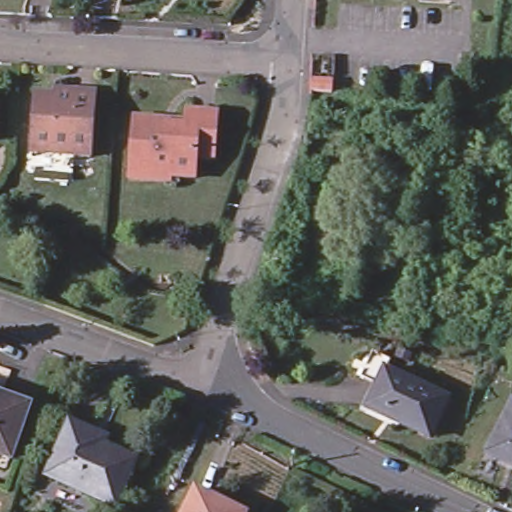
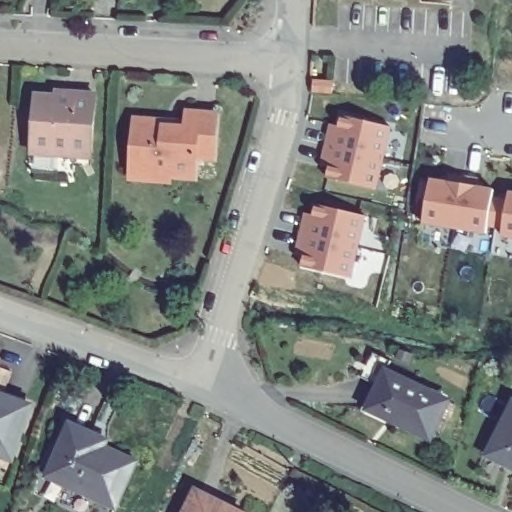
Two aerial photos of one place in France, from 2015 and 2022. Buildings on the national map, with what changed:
unchanged [(247,23),(241,17),(249,10),(254,16),(247,23)]
unchanged [(89,91),(87,154),(28,152),(30,95),(50,95),(50,89),(89,91)]
unchanged [(178,114),(210,117),(207,161),(189,159),(175,157),(177,130),(178,114)]
new [(393,127),(377,191),(326,178),(329,167),(319,166),(330,123),(340,126),(342,115),(393,127)]
unchanged [(122,180),(123,165),(127,119),(157,122),(157,128),(177,130),(175,157),(189,159),(187,179),(162,177),(161,183),(122,180)]
new [(430,187),(447,190),(447,182),(462,184),(454,236),(422,231),(430,187)]
new [(487,234),(486,241),(454,236),(462,184),(477,187),(476,195),(492,197),(492,205),(500,206),(507,207),(509,200),(512,201),(512,245),(502,244),(502,237),(495,236),(487,234)]
new [(300,226),(308,227),(312,212),(362,223),(354,254),(297,241),(300,226)]
new [(297,241),(354,254),(347,285),(297,273),(301,257),(293,256),(297,241)]
unchanged [(431,441),(364,414),(382,372),(448,399),(431,441)]
unchanged [(0,455),(0,396),(27,406),(25,410),(7,457),(0,455)]
unchanged [(482,455),(503,417),(512,421),(512,470),(482,455)]
unchanged [(111,509),(43,476),(67,423),(91,435),(87,441),(133,463),(111,509)]
unchanged [(224,512),(185,512),(195,491),(225,507),(222,511),(224,512)]

